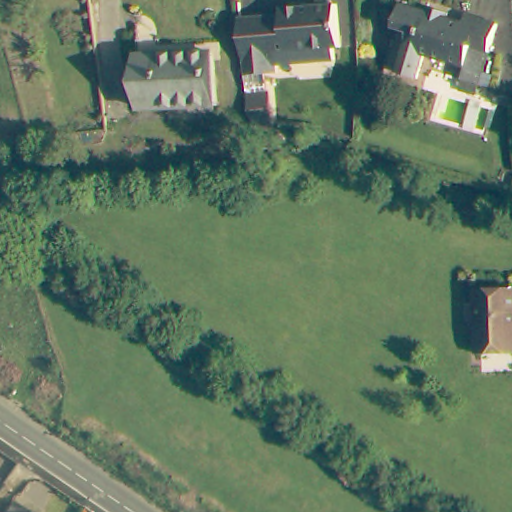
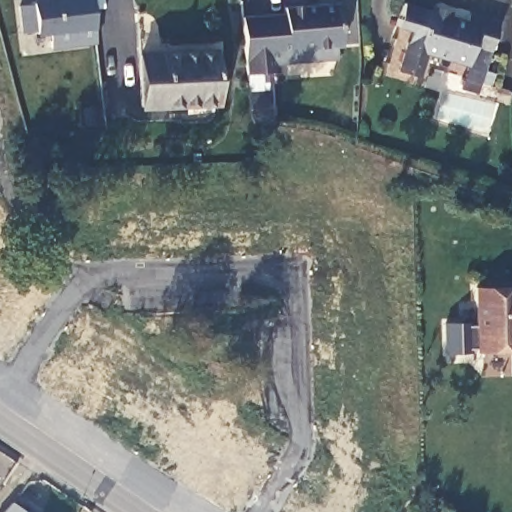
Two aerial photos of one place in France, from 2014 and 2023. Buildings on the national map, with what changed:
new [(52,49),(50,33),(36,34),(35,30),(24,30),(21,6),(32,5),(31,0),(92,0),(95,26),(96,43),(52,49)]
unchanged [(396,28),(395,27),(401,3),(426,10),(427,4),(447,10),(445,16),(462,21),(465,12),(496,21),(476,91),(458,85),(465,65),(425,54),(417,79),(397,74),(385,69),(396,28)]
unchanged [(243,35),(242,24),(285,23),(285,16),(317,16),(322,11),(334,10),(338,15),(340,15),(341,44),(335,44),(335,56),(276,58),(276,66),(252,68),(245,68),(243,35)]
unchanged [(212,49),(215,103),(137,106),(135,54),(212,49)]
unchanged [(254,130),(250,107),(272,104),(276,132),(254,130)]
unchanged [(512,349),(479,349),(476,286),(512,285),(512,349)]
unchanged [(10,499),(29,512),(1,512),(10,499)]

